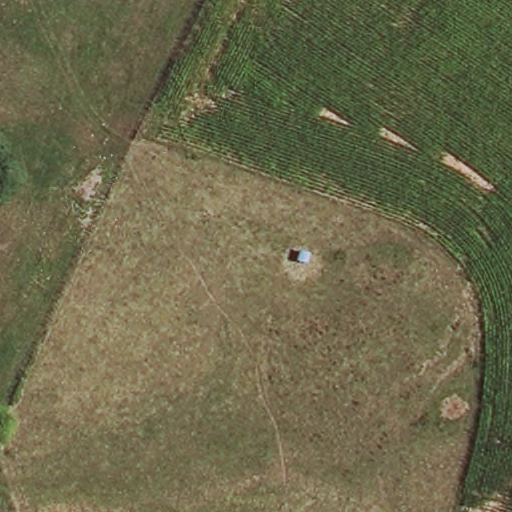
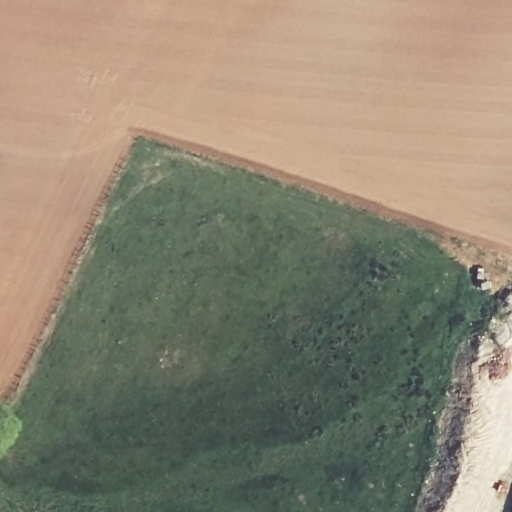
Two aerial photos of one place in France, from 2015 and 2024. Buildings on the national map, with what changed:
[]

